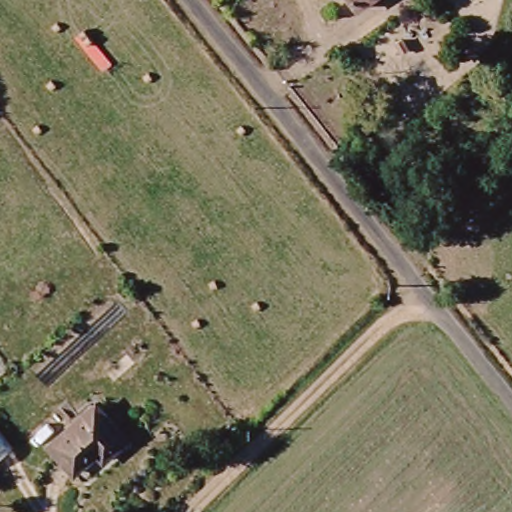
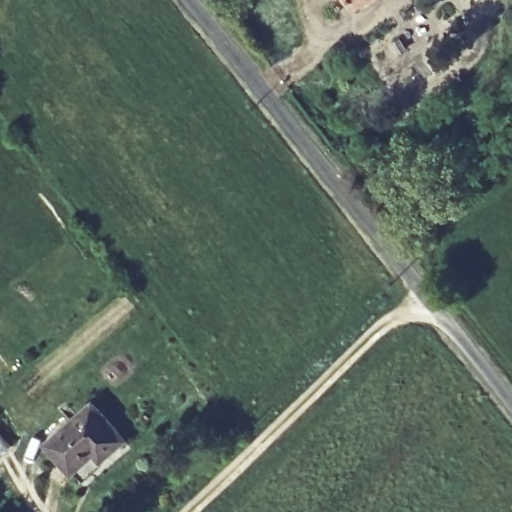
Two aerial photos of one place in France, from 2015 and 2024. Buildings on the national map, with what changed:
unchanged [(345,0),(369,0),(354,11),(345,0)]
unchanged [(100,465),(90,453),(68,471),(45,445),(94,402),(127,441),(100,465)]

